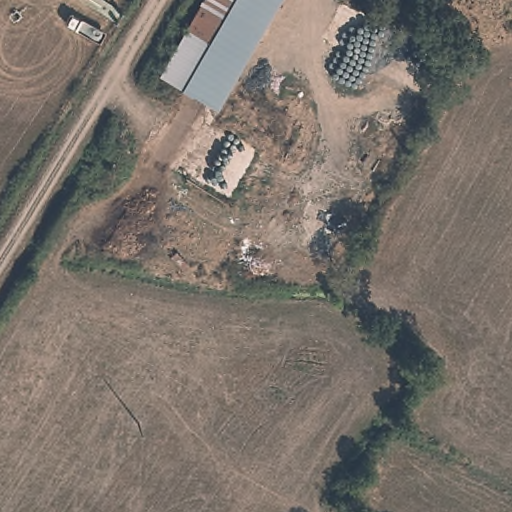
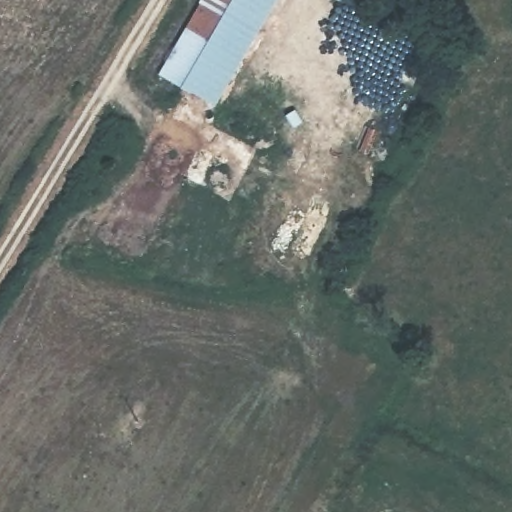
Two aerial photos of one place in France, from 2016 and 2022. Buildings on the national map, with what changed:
unchanged [(233,0),(182,86),(158,71),(200,0),(233,0)]
unchanged [(182,86),(233,0),(279,0),(216,107),(182,86)]

